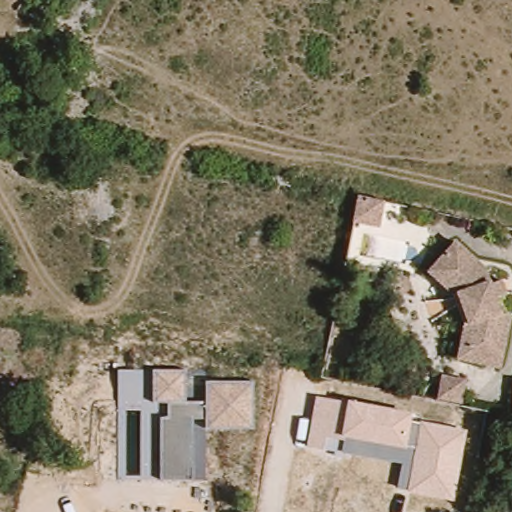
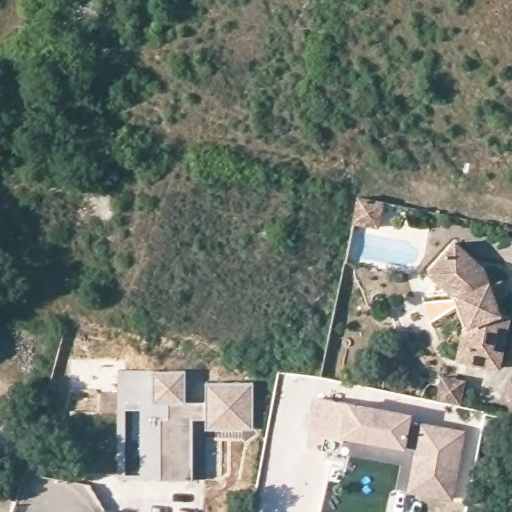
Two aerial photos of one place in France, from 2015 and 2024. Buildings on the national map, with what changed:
unchanged [(397,195),(392,221),(362,215),(368,190),(397,195)]
unchanged [(491,261),(495,273),(507,270),(512,284),(500,290),(507,304),(512,306),(512,319),(502,356),(461,344),(470,319),(459,288),(436,262),(464,232),(491,261)]
unchanged [(255,429),(205,430),(205,420),(195,420),(196,478),(160,479),(162,417),(169,417),(169,402),(153,401),(153,369),(186,369),(186,401),(206,401),(206,380),(255,381),(255,429)]
unchanged [(477,373),(473,395),(449,391),(453,369),(477,373)]
unchanged [(415,414),(413,421),(468,429),(455,501),(396,489),(401,465),(306,446),(317,397),(415,414)]

